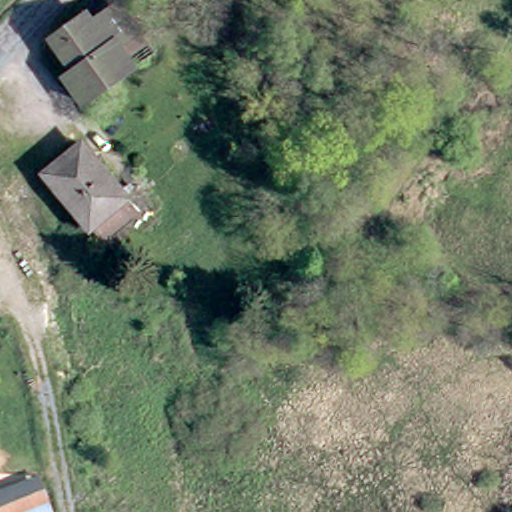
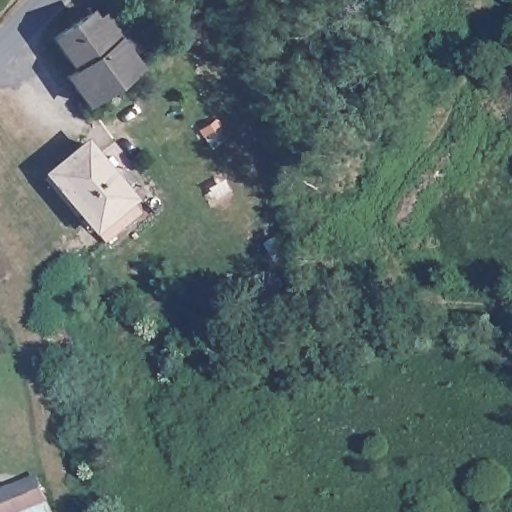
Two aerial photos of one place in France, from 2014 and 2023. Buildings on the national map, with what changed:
unchanged [(127,54),(67,89),(58,75),(67,69),(47,39),(84,15),(90,25),(116,8),(138,47),(127,54)]
unchanged [(144,60),(77,104),(67,89),(127,54),(138,47),(143,57),(144,60)]
unchanged [(132,207),(97,233),(42,163),(77,136),(132,207)]
unchanged [(52,512),(0,512),(0,491),(40,477),(52,512)]

